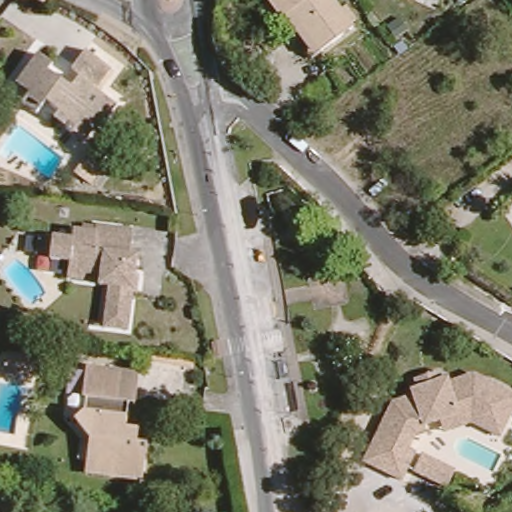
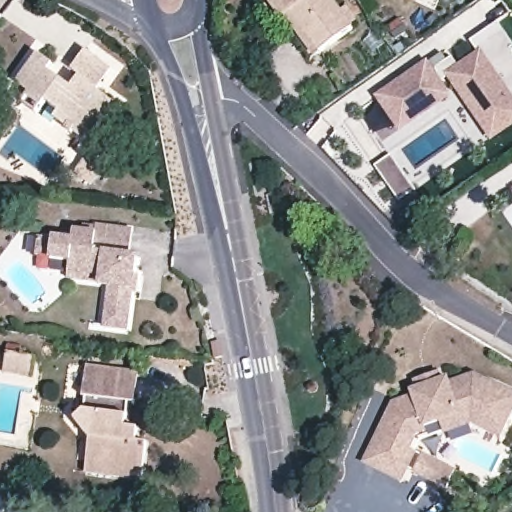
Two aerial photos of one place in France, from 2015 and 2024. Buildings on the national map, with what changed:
unchanged [(285,11),(281,14),(271,0),(336,0),(352,23),(321,45),(314,51),(285,11)]
new [(439,53),(443,59),(449,55),(455,63),(475,49),(470,41),(495,24),(512,48),(507,51),(512,58),(512,125),(490,140),(454,88),(397,128),(375,97),(439,53)]
unchanged [(105,73),(89,94),(105,105),(92,121),(89,119),(73,141),(61,131),(60,133),(53,129),(55,127),(43,118),(47,112),(33,103),(25,113),(10,103),(17,93),(4,82),(25,54),(40,66),(37,71),(60,88),(68,78),(59,71),(75,51),(100,69),(105,73)]
unchanged [(98,159),(85,178),(79,175),(75,181),(63,172),(82,147),(98,159)]
unchanged [(153,149),(156,161),(139,165),(136,154),(153,149)]
new [(386,156),(410,189),(395,199),(372,166),(386,156)]
unchanged [(135,293),(130,329),(108,327),(112,286),(70,280),(72,271),(73,261),(53,258),(40,256),(43,236),(55,238),(75,240),(77,230),(87,231),(87,224),(100,226),(135,230),(132,258),(138,259),(137,276),(142,277),(140,294),(135,293)]
unchanged [(452,257),(459,256),(464,264),(460,270),(452,265),(452,257)]
unchanged [(225,342),(227,357),(217,358),(215,344),(225,342)]
unchanged [(32,358),(29,378),(3,374),(5,354),(32,358)]
unchanged [(192,361),(190,369),(145,362),(146,354),(192,361)]
unchanged [(141,368),(138,398),(132,397),(129,423),(140,424),(140,437),(150,439),(145,475),(90,467),(93,435),(77,416),(87,407),(90,392),(87,392),(91,361),(123,365),(141,368)]
unchanged [(389,403),(410,396),(405,384),(445,372),(448,384),(478,375),(512,393),(512,418),(498,444),(471,430),(442,440),(437,429),(415,436),(406,449),(415,453),(398,484),(362,463),(389,403)]
unchanged [(425,456),(455,471),(445,491),(415,473),(425,456)]
unchanged [(0,512),(0,500),(6,512),(0,512)]

